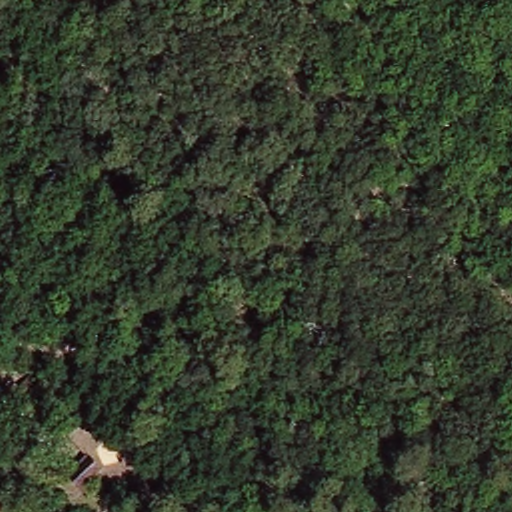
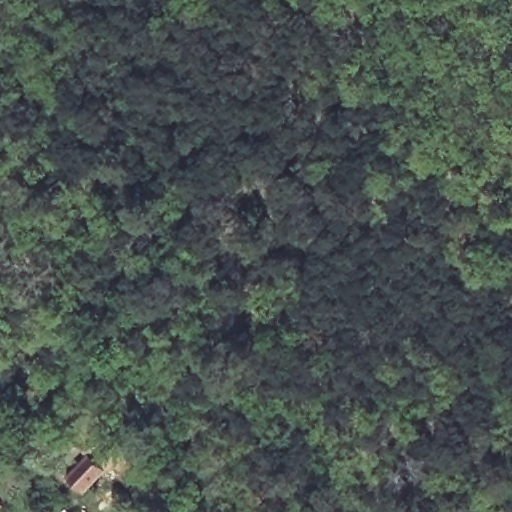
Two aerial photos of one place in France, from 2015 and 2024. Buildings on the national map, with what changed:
unchanged [(0,381),(0,379),(5,369),(23,380),(17,392),(0,381)]
unchanged [(43,373),(54,385),(42,396),(32,385),(43,373)]
unchanged [(109,465),(87,490),(71,476),(92,449),(109,465)]
unchanged [(3,507),(0,511),(0,504),(3,507)]

